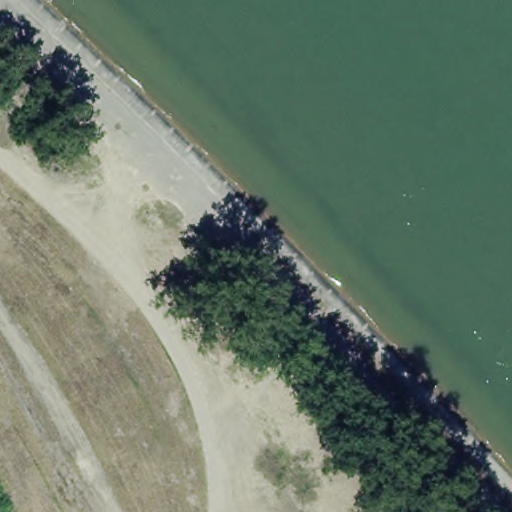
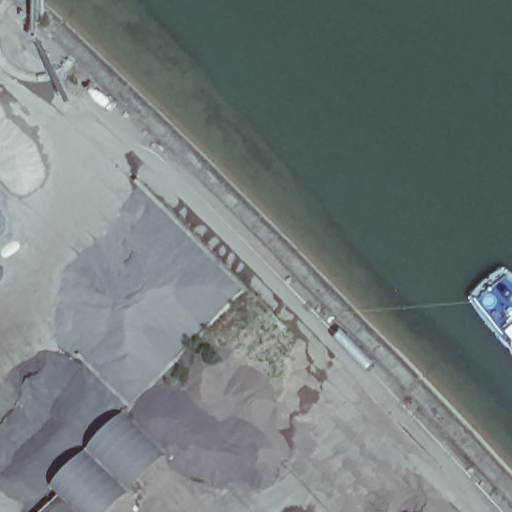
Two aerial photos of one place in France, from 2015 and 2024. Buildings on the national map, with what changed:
new [(124,413),(165,455),(109,512),(81,512),(53,485),(124,413)]

